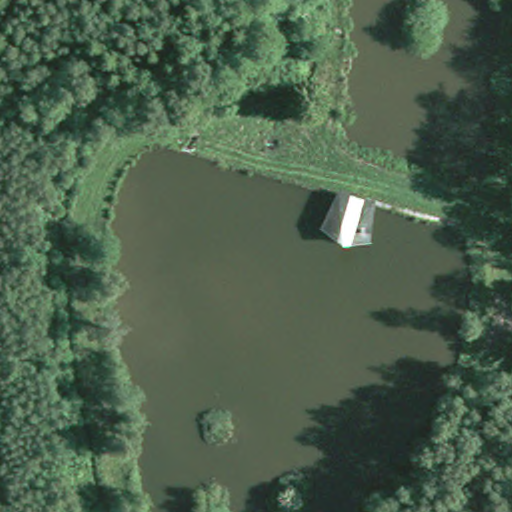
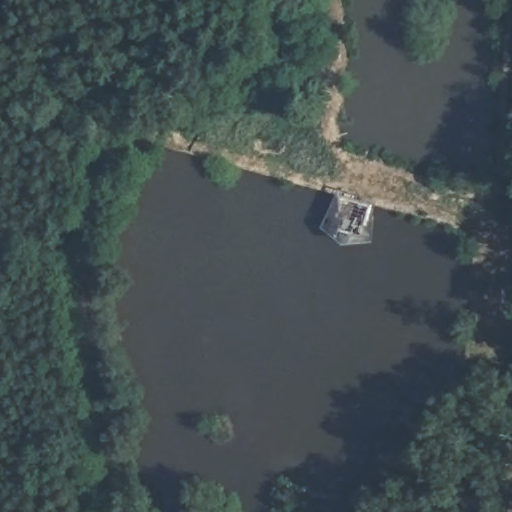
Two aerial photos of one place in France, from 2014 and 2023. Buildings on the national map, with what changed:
unchanged [(319,225),(329,190),(360,199),(350,234),(319,225)]

